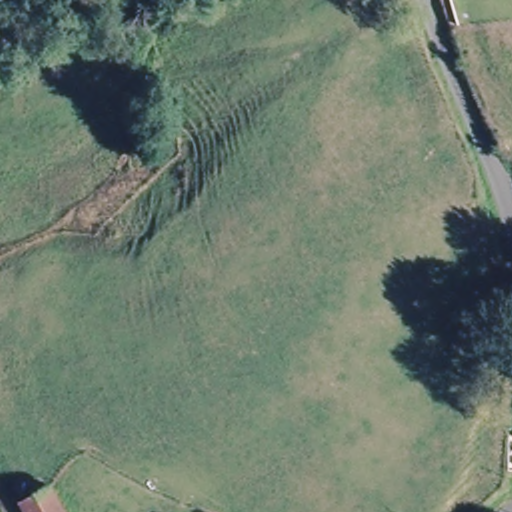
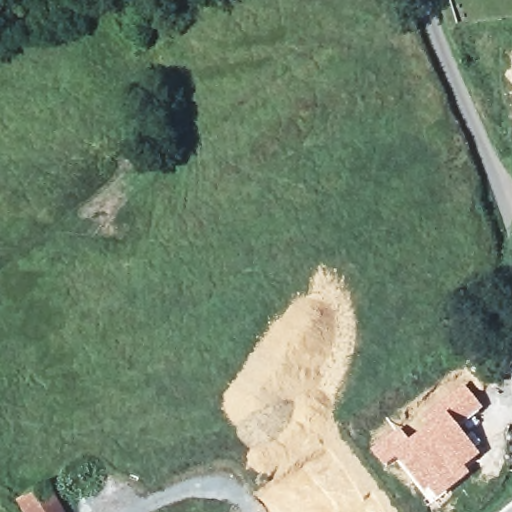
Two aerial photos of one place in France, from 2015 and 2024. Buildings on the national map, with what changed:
new [(400,428),(410,440),(429,423),(423,417),(463,382),(483,407),(460,427),(481,455),(466,468),(470,475),(433,502),(396,460),(385,468),(371,450),(400,428)]
unchanged [(19,503),(49,486),(64,512),(24,512),(19,503)]

